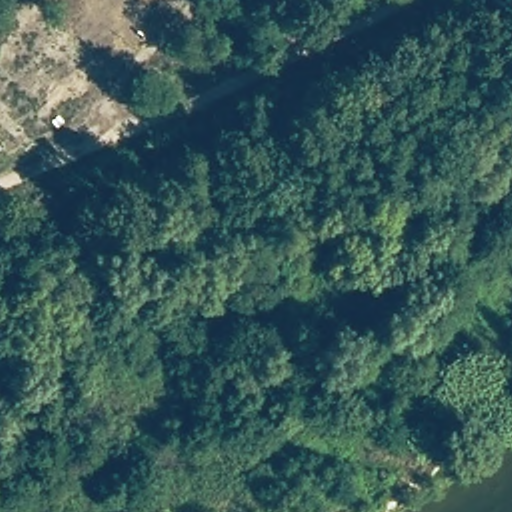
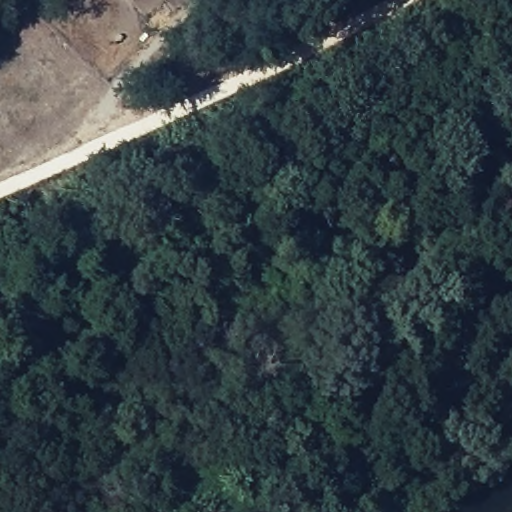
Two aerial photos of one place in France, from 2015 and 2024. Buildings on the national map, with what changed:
[]

